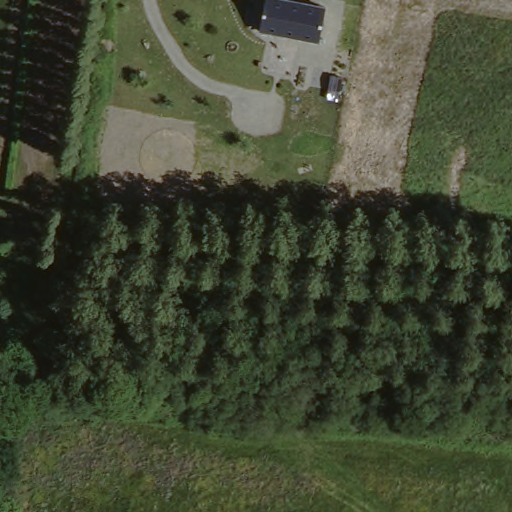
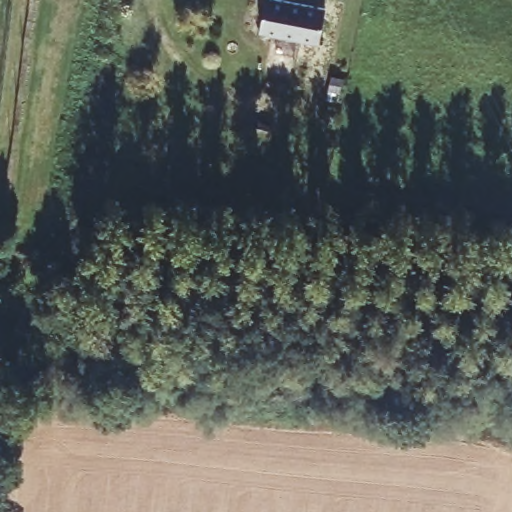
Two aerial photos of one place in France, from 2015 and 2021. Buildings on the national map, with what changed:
unchanged [(262,0),(291,0),(330,7),(321,44),(255,32),(262,0)]

